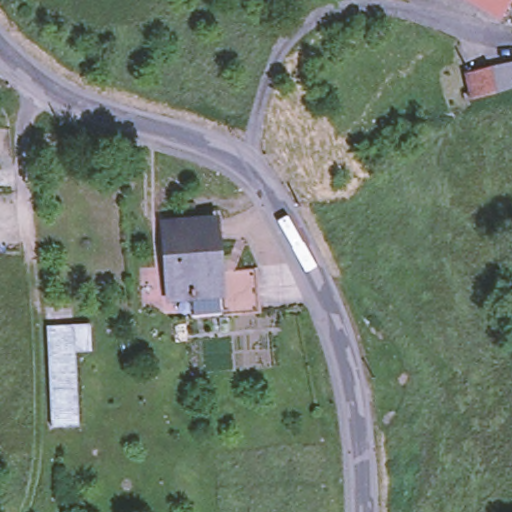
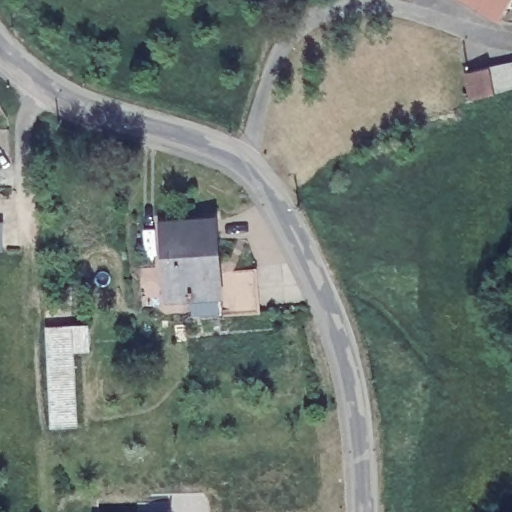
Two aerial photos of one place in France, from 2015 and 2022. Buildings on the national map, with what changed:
unchanged [(486,9),(470,0),(512,0),(501,19),(486,9)]
unchanged [(459,88),(466,86),(462,66),(485,61),(512,55),(512,80),(491,88),(468,94),(461,96),(459,88)]
unchanged [(191,297),(168,299),(164,245),(163,223),(216,218),(218,242),(220,271),(257,269),(261,312),(223,315),(193,318),(191,297)]
unchanged [(47,424),(46,399),(43,325),(42,322),(68,320),(83,319),(84,345),(69,346),(73,421),(47,424)]

